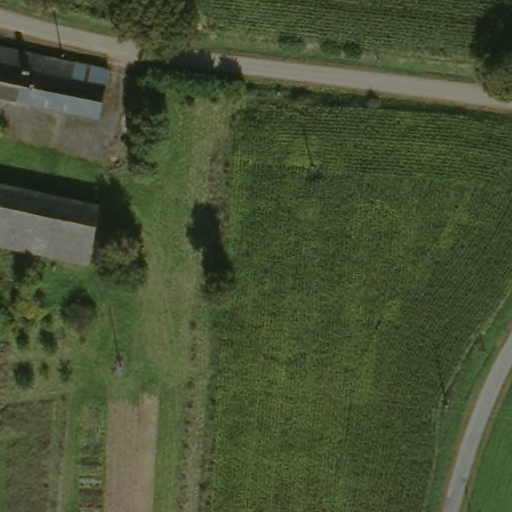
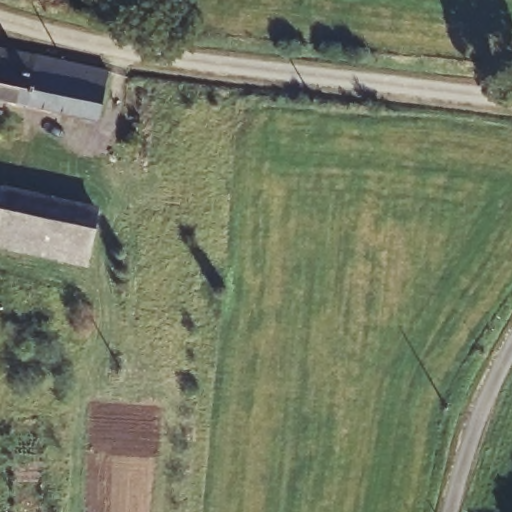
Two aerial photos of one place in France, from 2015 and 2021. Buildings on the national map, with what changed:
unchanged [(0,92),(0,40),(40,52),(31,101),(0,92)]
unchanged [(31,101),(40,52),(74,61),(114,70),(112,81),(100,120),(31,101)]
unchanged [(3,211),(0,211),(0,183),(7,185),(7,190),(95,203),(103,204),(94,259),(93,259),(0,243),(0,232),(3,211)]

